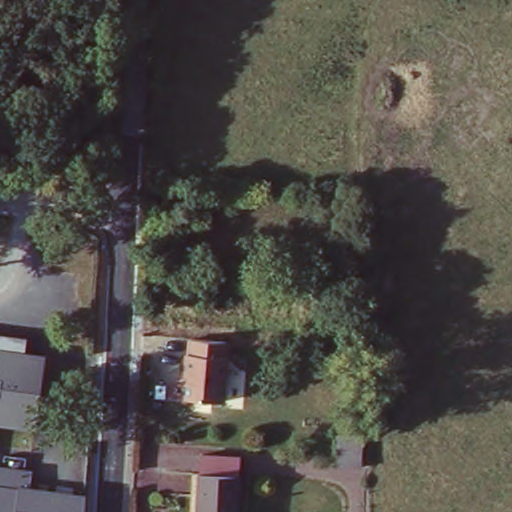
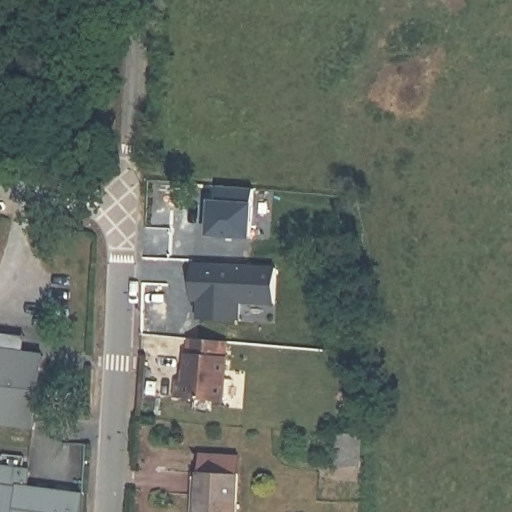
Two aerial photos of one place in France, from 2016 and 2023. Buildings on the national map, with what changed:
new [(251,187),(246,237),(205,234),(208,200),(218,201),(220,185),(251,187)]
new [(233,300),(232,320),(195,318),(197,283),(189,282),(190,265),(190,260),(272,263),(272,268),(270,303),(233,300)]
unchanged [(25,334),(23,351),(43,354),(33,429),(0,425),(0,331),(25,334)]
unchanged [(225,338),(223,353),(225,353),(221,398),(174,393),(176,375),(183,376),(186,349),(189,349),(190,334),(225,338)]
unchanged [(361,436),(361,464),(336,465),(337,437),(361,436)]
unchanged [(240,512),(198,512),(197,451),(240,450),(240,512)]
unchanged [(2,452),(24,455),(21,467),(32,468),(29,486),(84,494),(82,512),(0,512),(0,463),(2,452)]

